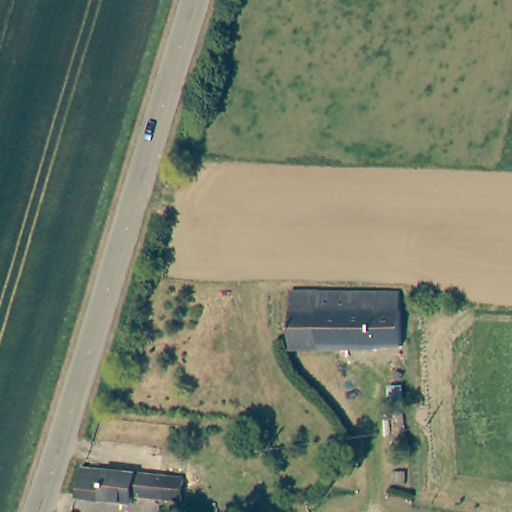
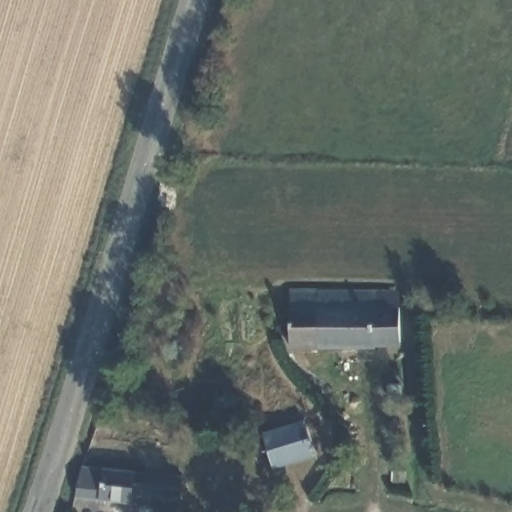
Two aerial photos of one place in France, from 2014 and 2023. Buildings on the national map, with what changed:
unchanged [(320,289),(319,342),(293,342),(293,317),(293,284),(320,284),(320,289)]
unchanged [(353,288),(383,289),(401,290),(402,304),(403,342),(344,343),(319,342),(320,289),(353,288)]
new [(315,457),(274,469),(263,432),(305,420),(315,457)]
unchanged [(163,474),(184,476),(181,500),(161,498),(131,495),(130,505),(73,500),(84,466),(163,474)]

